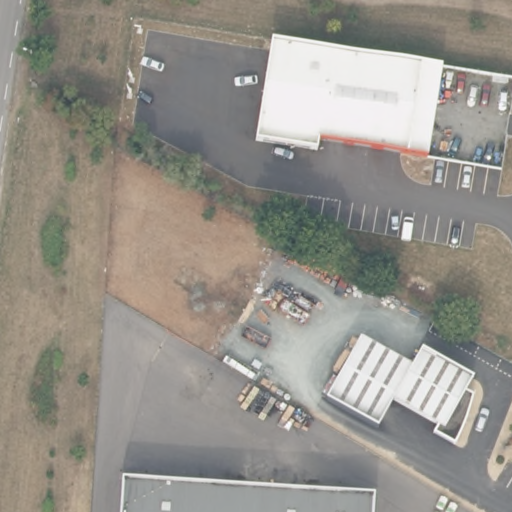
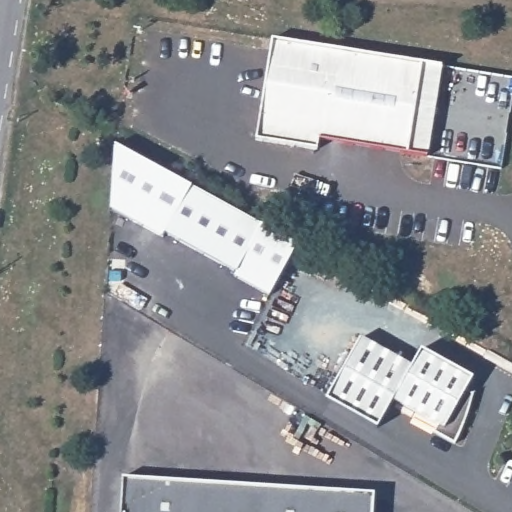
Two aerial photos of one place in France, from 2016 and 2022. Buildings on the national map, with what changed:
unchanged [(317,140),(316,149),(255,140),(269,37),(441,66),(427,156),(317,140)]
new [(115,144),(192,185),(261,225),(262,222),(300,242),(270,298),(232,278),(236,273),(165,235),(162,240),(109,209),(115,144)]
unchanged [(360,338),(412,367),(422,350),(473,378),(466,390),(473,395),(472,401),(470,409),(467,418),(463,428),(459,437),(455,445),(434,433),(438,425),(393,400),(377,428),(326,400),(360,338)]
unchanged [(375,494),(373,512),(120,512),(122,478),(375,494)]

